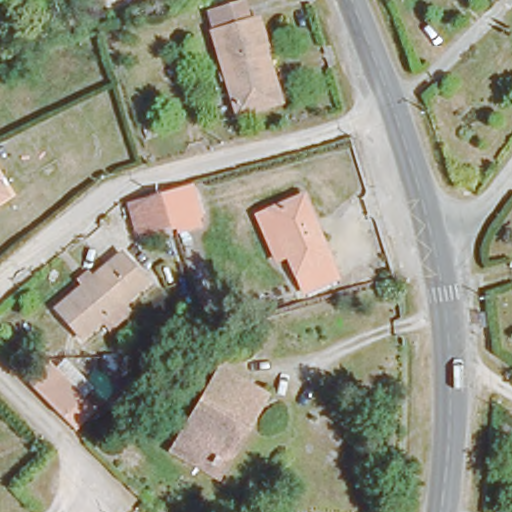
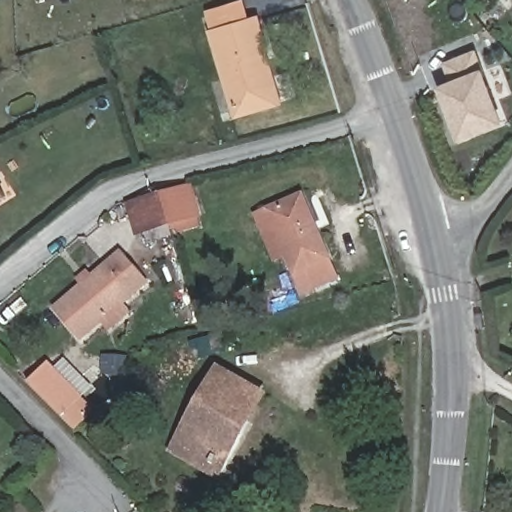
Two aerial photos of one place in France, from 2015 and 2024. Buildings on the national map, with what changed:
unchanged [(265,57),(258,59),(272,103),(232,114),(209,34),(212,32),(206,13),(211,12),(208,2),(214,0),(237,0),(238,4),(244,23),(254,20),(265,57)]
new [(439,87),(451,82),(444,64),(472,53),(499,121),(458,137),(452,120),(447,109),(439,87)]
unchanged [(0,195),(0,167),(12,187),(0,195)]
unchanged [(167,239),(167,237),(164,227),(136,236),(125,206),(153,195),(156,194),(181,186),(184,185),(195,217),(199,228),(167,239)]
unchanged [(311,187),(345,275),(305,291),(288,256),(275,261),(256,207),(311,187)]
unchanged [(122,248),(146,278),(80,331),(55,301),(122,248)]
unchanged [(87,393),(66,414),(36,385),(32,381),(52,360),(87,393)]
unchanged [(210,471),(176,450),(182,440),(223,368),(258,390),(236,429),(241,432),(222,464),(216,475),(210,471)]

